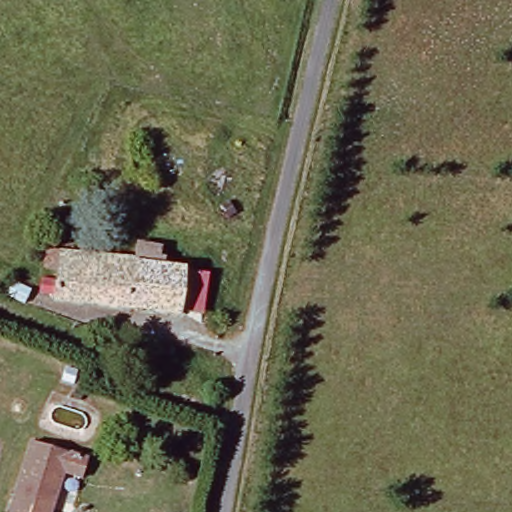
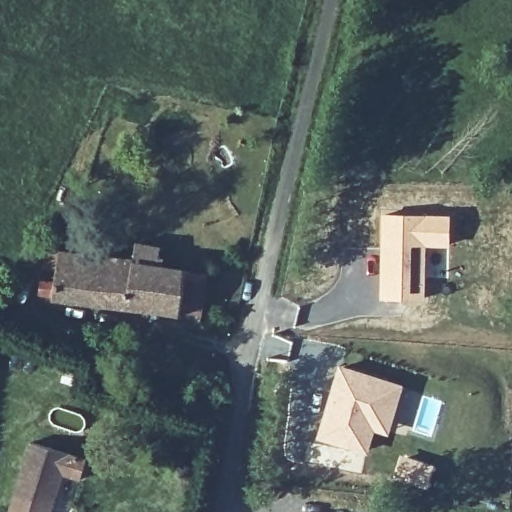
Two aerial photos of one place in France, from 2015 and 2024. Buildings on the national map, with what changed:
new [(380,212),(451,213),(450,247),(428,246),(425,301),(379,300),(380,212)]
unchanged [(59,263),(39,261),(41,248),(61,250),(135,256),(136,242),(161,245),(159,265),(185,267),(180,313),(55,300),(59,263)]
new [(268,334),(293,341),(288,360),(264,357),(268,334)]
new [(338,362),(405,383),(389,435),(376,430),(367,456),(313,442),(338,362)]
unchanged [(90,462),(84,481),(65,476),(55,512),(15,512),(34,446),(90,462)]
new [(399,452),(436,464),(429,490),(391,478),(399,452)]
new [(302,512),(297,512),(297,511),(302,512)]

